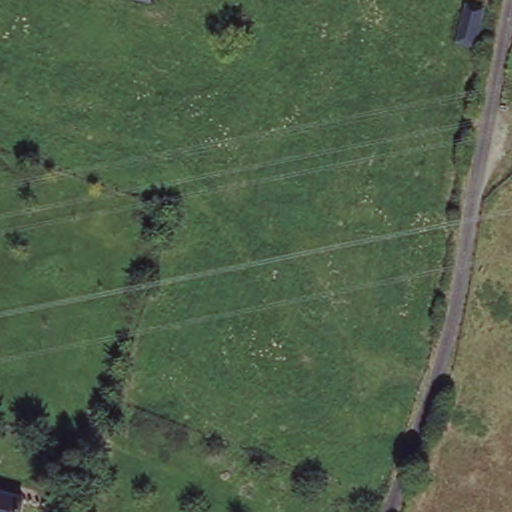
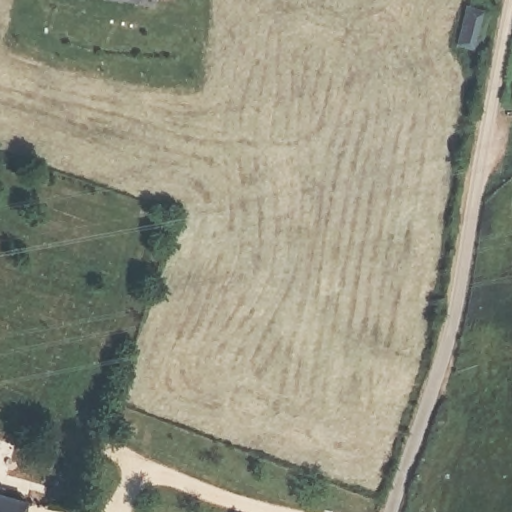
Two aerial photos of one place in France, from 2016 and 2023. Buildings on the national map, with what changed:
unchanged [(486,15),(481,38),(465,35),(470,12),(486,15)]
unchanged [(33,501),(30,512),(0,512),(0,492),(33,501)]

